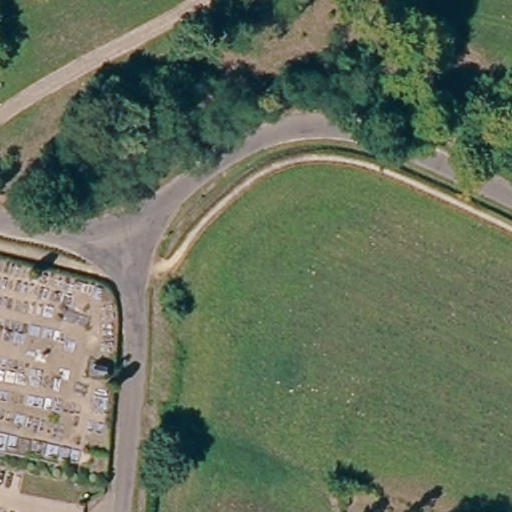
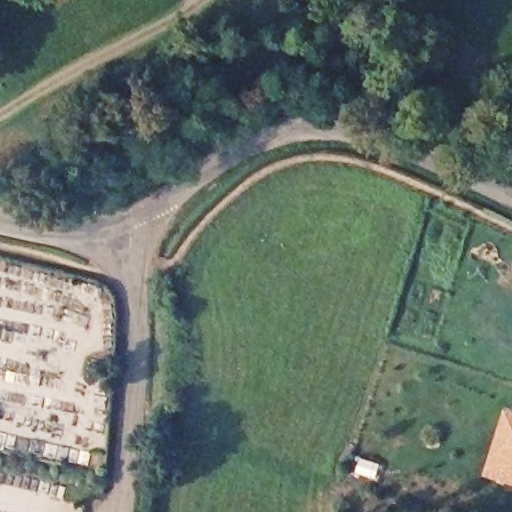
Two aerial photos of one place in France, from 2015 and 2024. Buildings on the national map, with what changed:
new [(485,475),(506,407),(512,410),(512,485),(485,475)]

